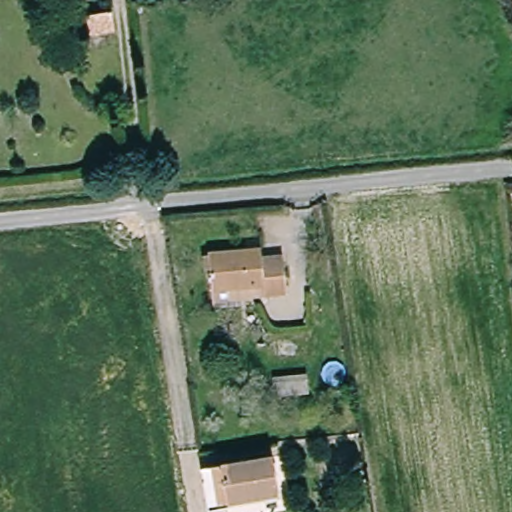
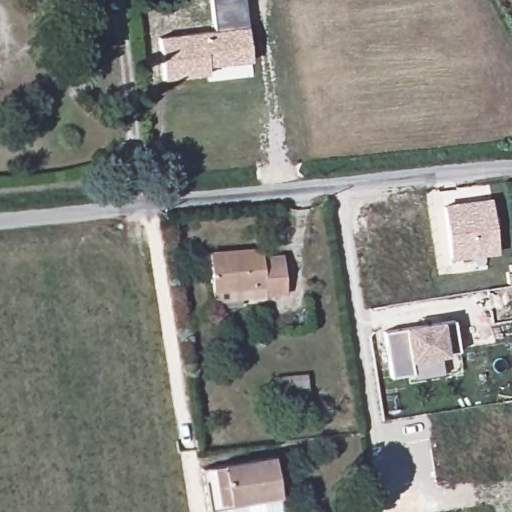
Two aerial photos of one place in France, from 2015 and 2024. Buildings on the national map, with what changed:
new [(209,66),(210,75),(163,80),(159,36),(214,30),(210,0),(244,0),(248,26),(251,61),(209,66)]
unchanged [(86,30),(83,9),(98,6),(107,5),(110,27),(86,30)]
new [(450,260),(442,205),(490,197),(499,254),(450,260)]
unchanged [(284,296),(265,298),(263,291),(212,297),(206,258),(258,251),(261,280),(282,277),(284,296)]
new [(453,316),(457,348),(409,355),(411,370),(389,373),(382,327),(453,316)]
unchanged [(305,377),(307,392),(274,397),(271,382),(305,377)]
unchanged [(232,497),(233,503),(213,505),(205,463),(276,452),(282,490),(232,497)]

